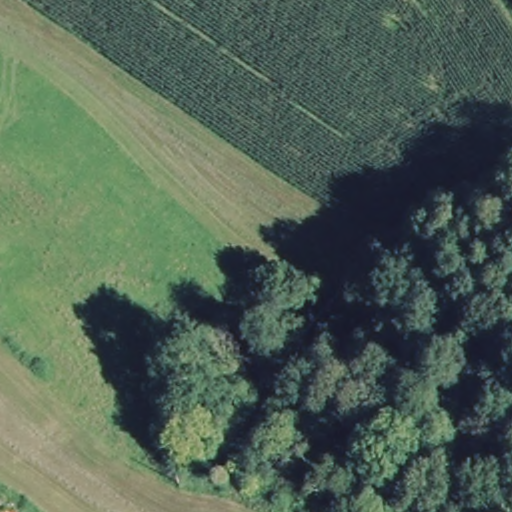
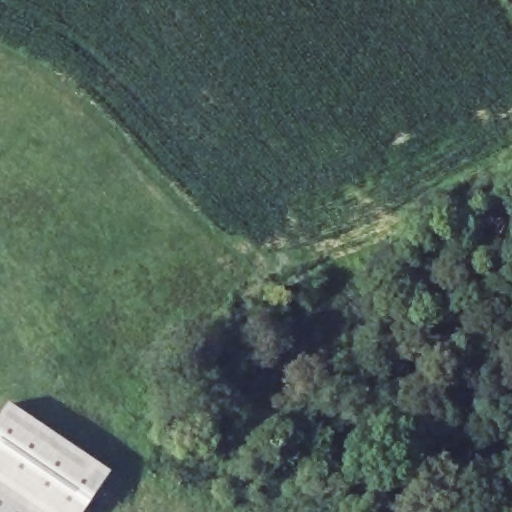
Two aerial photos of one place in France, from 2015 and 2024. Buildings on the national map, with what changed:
new [(0,411),(1,408),(103,477),(80,512),(0,512),(0,411)]

